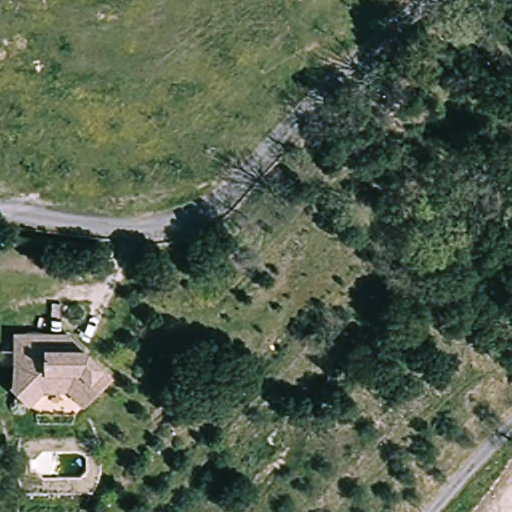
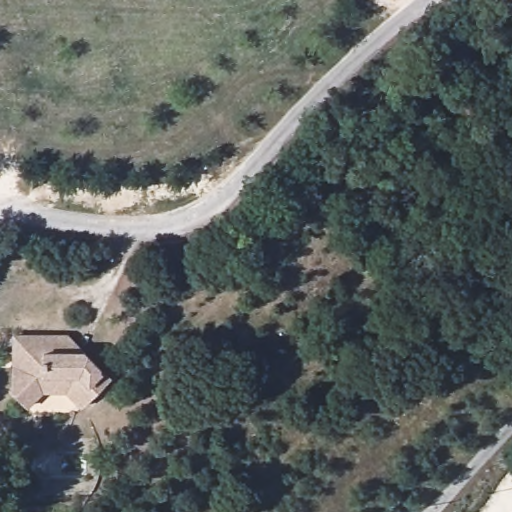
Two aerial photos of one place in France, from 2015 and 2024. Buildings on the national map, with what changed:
unchanged [(63,409),(52,389),(35,382),(12,396),(1,379),(15,369),(24,345),(15,340),(22,320),(51,330),(73,337),(83,354),(103,383),(63,409)]

